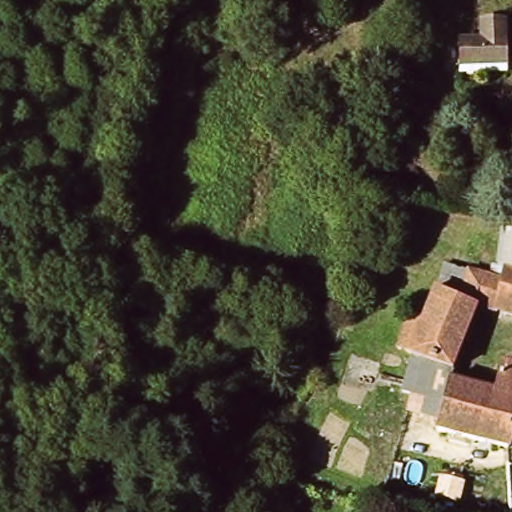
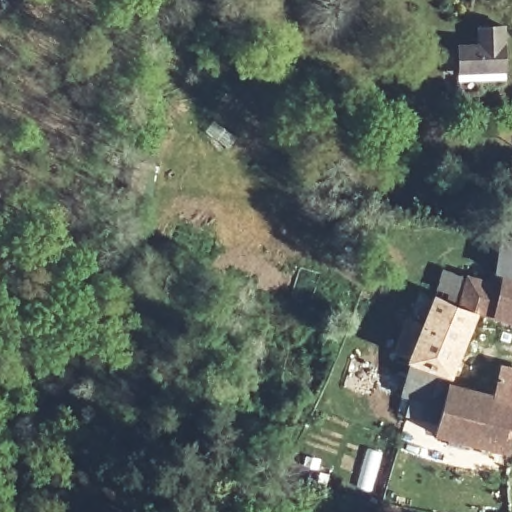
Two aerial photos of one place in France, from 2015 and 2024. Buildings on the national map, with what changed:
unchanged [(474,37),(492,38),(492,24),(512,24),(512,76),(472,79),(472,69),(474,37)]
unchanged [(477,285),(482,272),(503,275),(512,248),(512,307),(497,304),(487,334),(445,320),(454,280),(477,285)]
unchanged [(512,374),(512,443),(454,434),(459,411),(423,398),(436,357),(426,351),(435,316),(445,320),(487,334),(473,379),(506,389),(512,374)]

